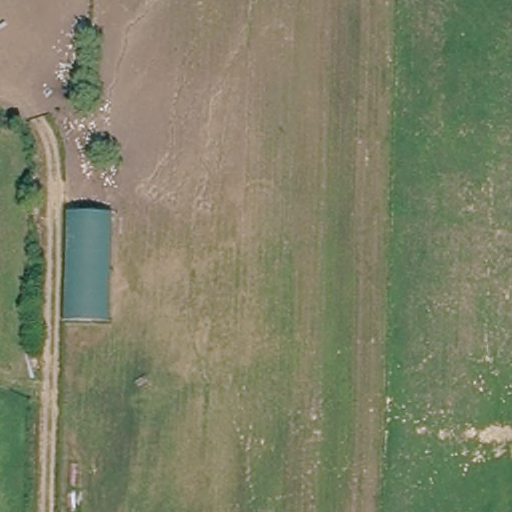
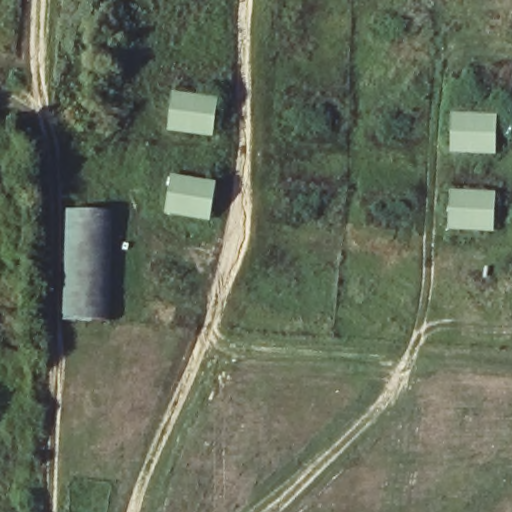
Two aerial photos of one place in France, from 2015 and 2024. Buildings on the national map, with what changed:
new [(170,89),(219,96),(213,136),(165,130),(170,89)]
new [(450,111),(497,113),(496,155),(448,153),(450,111)]
new [(168,172),(217,181),(209,221),(162,213),(168,172)]
new [(447,187),(496,191),(493,232),(445,228),(447,187)]
unchanged [(111,211),(107,320),(64,319),(67,210),(111,211)]

